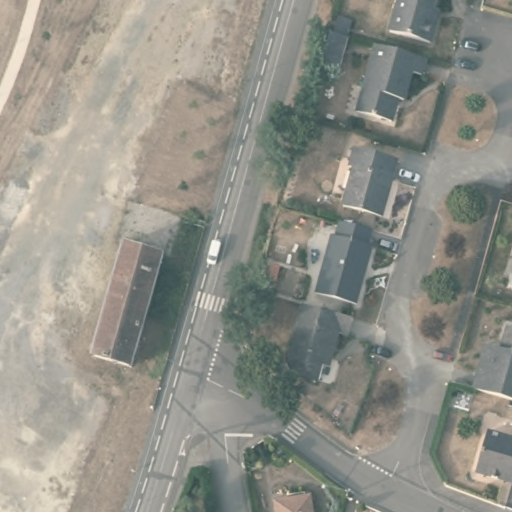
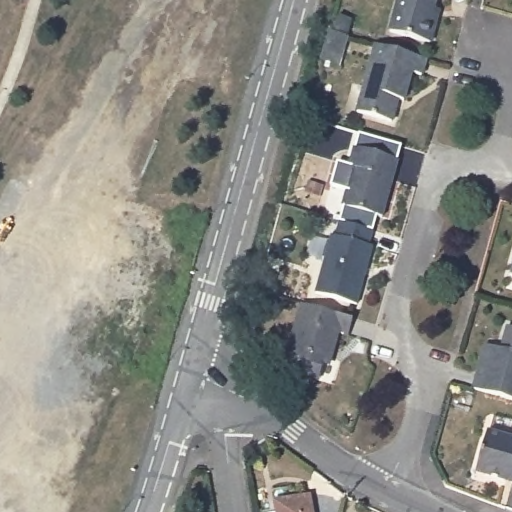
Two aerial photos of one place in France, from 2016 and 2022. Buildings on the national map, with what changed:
unchanged [(434,13),(440,15),(434,37),(393,25),(400,0),(438,0),(434,13)]
unchanged [(322,59),(325,49),(331,29),(334,30),(339,13),(353,17),(348,35),(342,53),(339,64),(322,59)]
unchanged [(422,74),(414,71),(406,97),(400,95),(392,118),(358,109),(377,42),(428,57),(422,74)]
unchanged [(357,165),(351,163),(356,143),(400,157),(384,213),(346,202),(357,165)]
unchanged [(375,228),(371,241),(376,243),(359,301),(316,289),(333,231),(338,232),(341,219),(375,228)]
demolished [(166,258),(134,367),(98,357),(130,248),(166,258)]
unchanged [(355,319),(349,335),(339,333),(331,359),(324,358),(317,379),(290,371),(288,364),(306,306),(355,319)]
unchanged [(498,343),(504,344),(511,323),(512,324),(512,397),(475,386),(480,370),(488,340),(498,343)]
unchanged [(482,470),(474,467),(476,460),(486,427),(512,435),(512,478),(512,479),(503,476),(482,470)]
unchanged [(311,512),(276,512),(275,502),(309,497),(311,512)]

